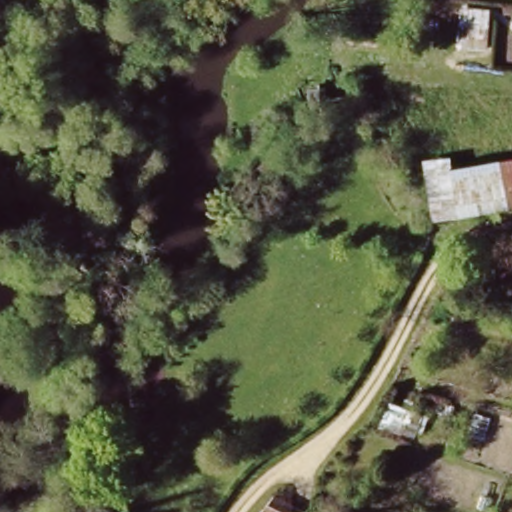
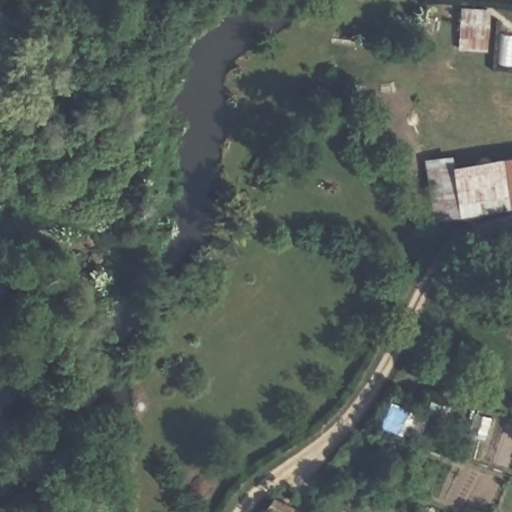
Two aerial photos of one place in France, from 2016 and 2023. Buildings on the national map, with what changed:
unchanged [(490,7),(488,49),(458,47),(460,6),(490,7)]
unchanged [(512,147),(512,201),(435,212),(423,161),(512,147)]
unchanged [(273,512),(265,508),(272,497),(272,496),(292,507),(289,512),(273,512)]

